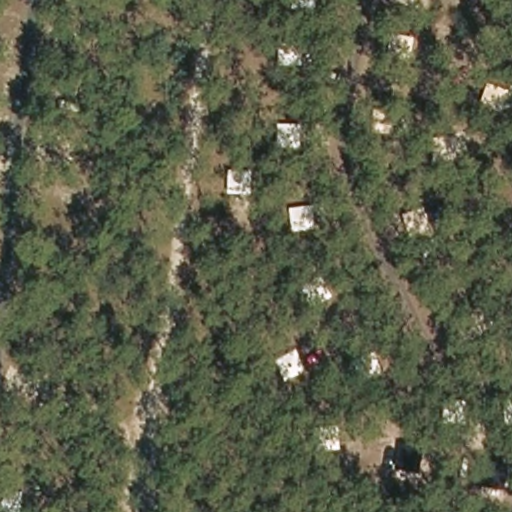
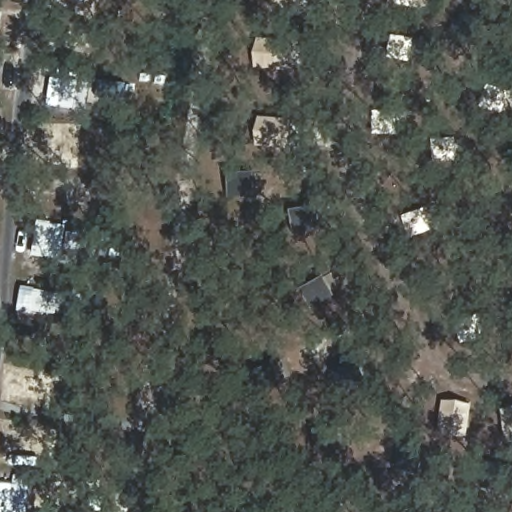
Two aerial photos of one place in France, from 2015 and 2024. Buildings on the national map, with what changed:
unchanged [(393,4),(393,0),(416,0),(416,8),(393,4)]
unchanged [(386,59),(387,32),(409,35),(409,60),(386,59)]
unchanged [(278,65),(277,41),(300,41),(303,64),(278,65)]
unchanged [(478,105),(484,81),(507,89),(499,111),(478,105)]
unchanged [(369,132),(369,107),(391,109),(391,133),(369,132)]
unchanged [(275,147),(275,124),(298,125),(300,147),(275,147)]
unchanged [(431,161),(431,136),(451,135),(454,160),(431,161)]
unchanged [(228,194),(228,170),(252,170),(250,195),(228,194)]
unchanged [(409,237),(400,214),(423,204),(431,227),(409,237)]
unchanged [(291,232),(288,209),(310,205),(313,229),(291,232)]
unchanged [(310,308),(298,288),(320,276),(331,296),(310,308)]
unchanged [(459,343),(453,318),(473,312),(483,336),(459,343)]
unchanged [(283,379),(273,358),(294,350),(304,370),(283,379)]
unchanged [(359,382),(350,359),(374,352),(381,376),(359,382)]
unchanged [(464,425),(442,422),(444,400),(464,400),(464,425)]
unchanged [(503,401),(512,400),(512,424),(505,424),(503,401)]
unchanged [(313,450),(311,428),(333,424),(337,447),(313,450)]
unchanged [(394,480),(394,457),(416,460),(416,480),(394,480)]
unchanged [(476,495),(479,470),(502,475),(499,500),(476,495)]

